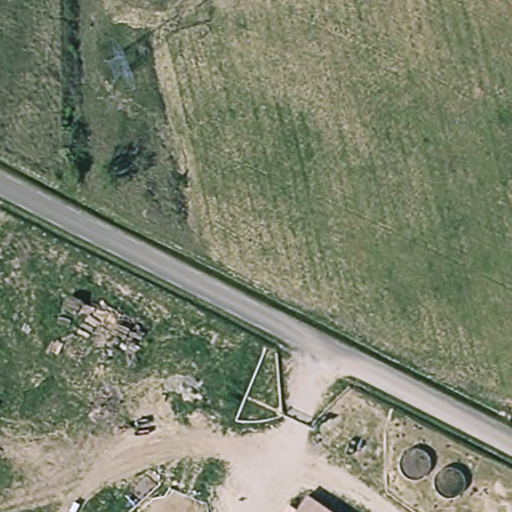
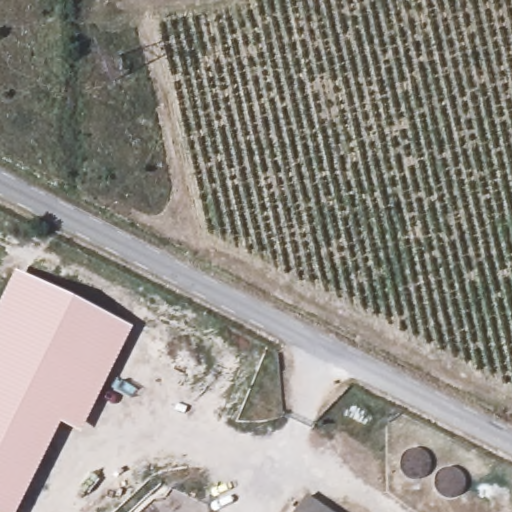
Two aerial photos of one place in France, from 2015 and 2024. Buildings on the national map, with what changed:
new [(132,328),(80,434),(60,425),(19,512),(0,512),(0,302),(15,271),(132,328)]
unchanged [(307,496),(331,512),(296,512),(307,496)]

